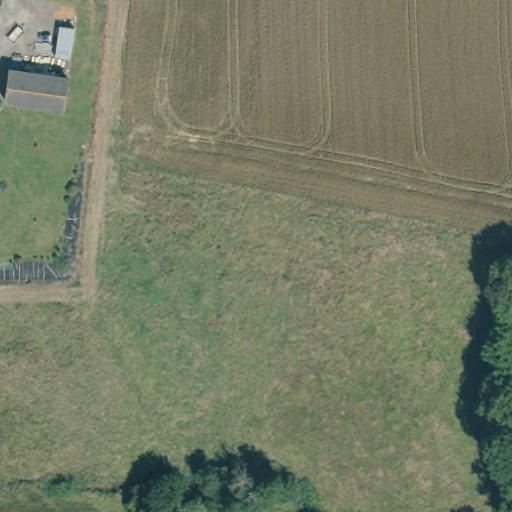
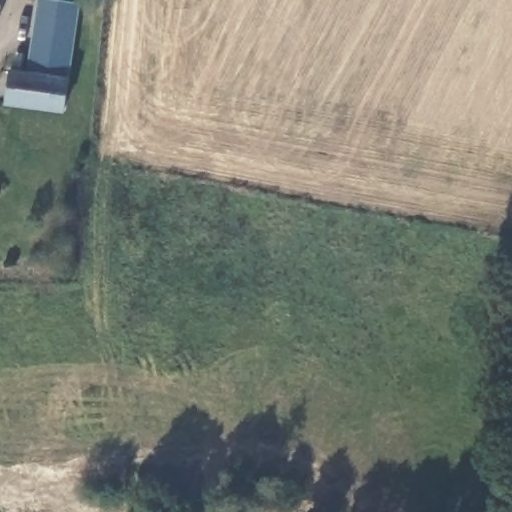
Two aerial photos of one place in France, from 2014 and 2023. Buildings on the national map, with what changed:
unchanged [(0,0),(6,0),(1,26),(0,26),(0,0)]
new [(63,0),(76,2),(65,77),(25,70),(36,0),(63,0)]
unchanged [(13,69),(25,70),(71,78),(66,111),(7,102),(13,69)]

